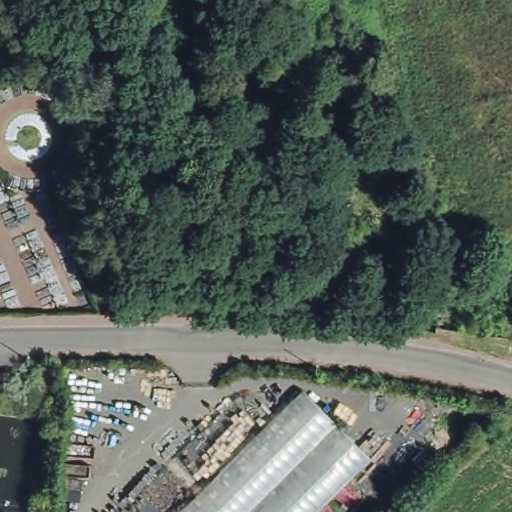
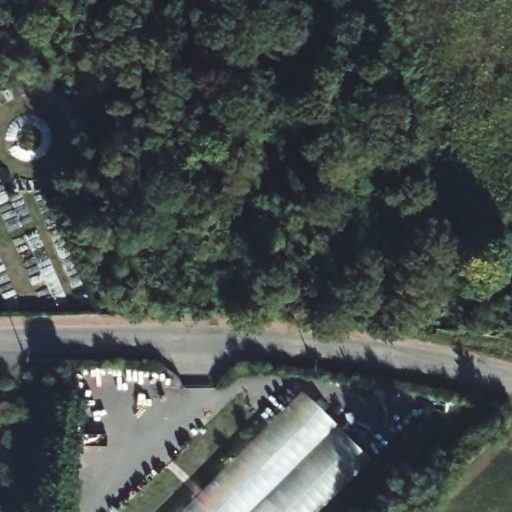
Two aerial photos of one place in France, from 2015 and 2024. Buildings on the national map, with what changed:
unchanged [(304,397),(369,461),(319,512),(183,512),(304,397)]

